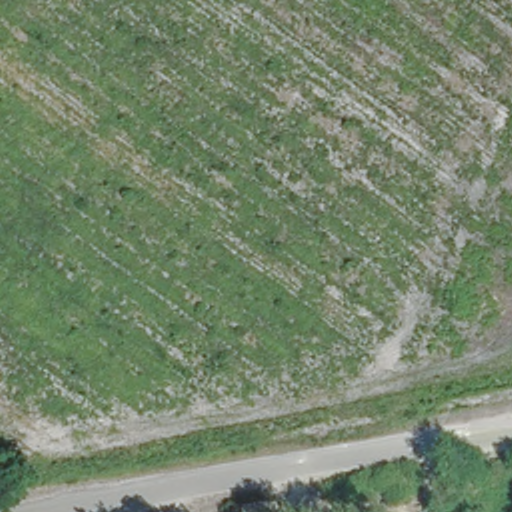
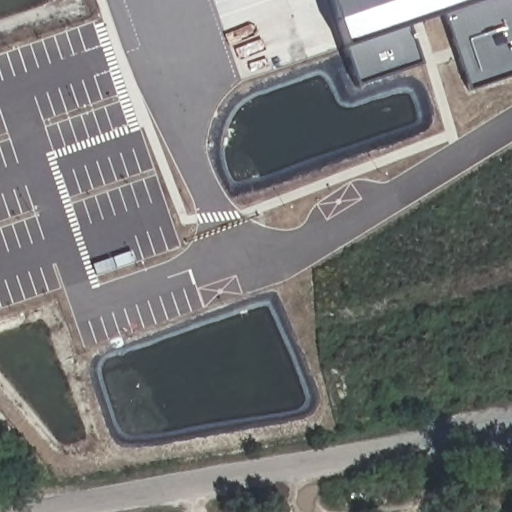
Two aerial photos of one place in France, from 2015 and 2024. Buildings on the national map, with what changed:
new [(472,85),(449,21),(410,32),(426,69),(362,85),(340,13),(335,0),(512,0),(512,73),(472,85)]

